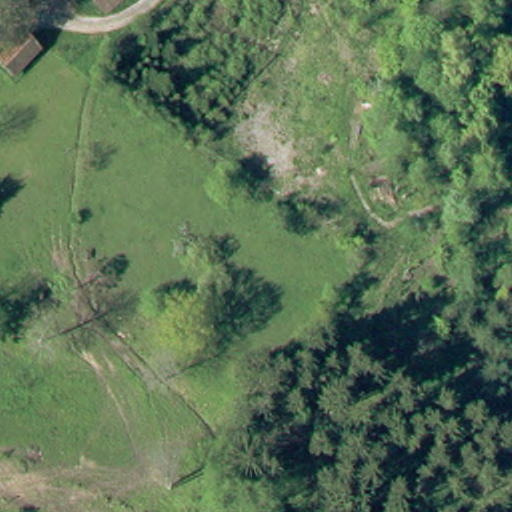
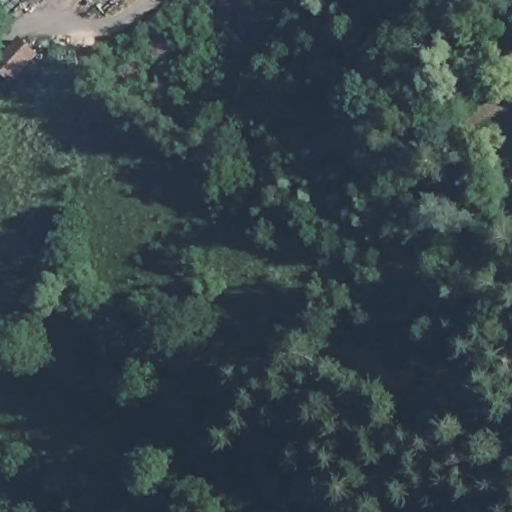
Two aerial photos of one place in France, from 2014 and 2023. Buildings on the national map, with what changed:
unchanged [(118,0),(118,1),(117,0),(118,0)]
unchanged [(5,74),(30,48),(44,60),(19,86),(5,74)]

